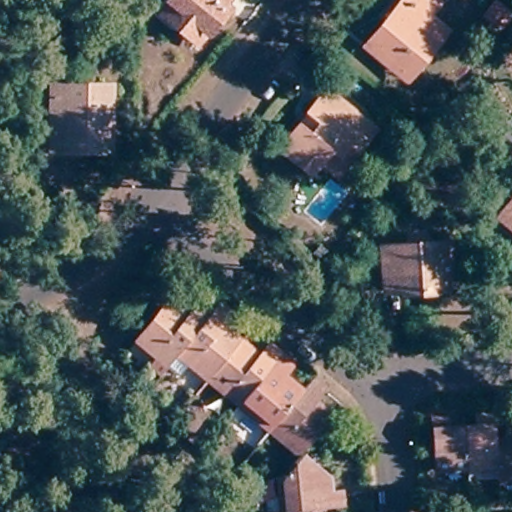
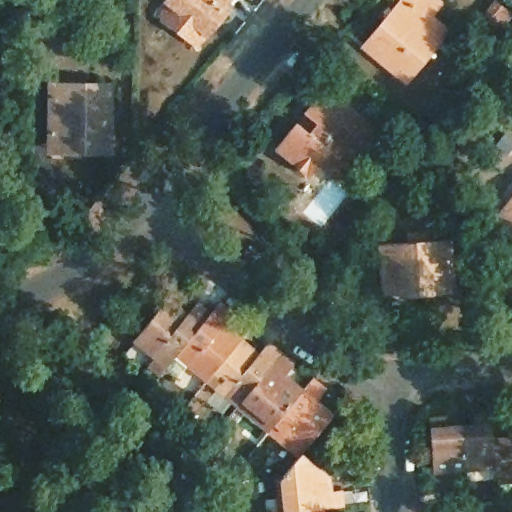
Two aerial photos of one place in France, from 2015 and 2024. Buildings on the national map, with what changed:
unchanged [(179,29),(161,14),(169,5),(164,1),(164,0),(221,0),(218,4),(225,7),(195,42),(179,29)]
unchanged [(358,50),(398,2),(400,0),(419,0),(431,10),(421,22),(438,35),(425,50),(398,82),(393,77),(358,50)]
unchanged [(51,145),(52,92),(52,87),(84,87),(110,87),(110,152),(83,152),(51,152),(51,145)]
unchanged [(336,181),(320,167),(311,179),(280,152),(298,131),(309,141),(318,130),(306,120),(326,95),(358,121),(374,134),(336,181)]
unchanged [(503,140),(512,147),(512,157),(506,165),(492,153),(503,140)]
unchanged [(494,222),(512,200),(512,237),(494,222)]
unchanged [(408,300),(407,294),(388,296),(384,249),(447,244),(449,270),(451,291),(433,292),(433,298),(408,300)]
unchanged [(170,302),(185,312),(194,302),(209,312),(219,302),(235,314),(229,327),(258,352),(268,338),(297,363),(287,377),(308,390),(317,377),(328,387),(319,402),(336,417),(299,457),(131,342),(170,302)]
unchanged [(498,467),(467,468),(464,428),(475,427),(475,418),(494,417),(496,440),(498,467)]
unchanged [(467,468),(438,471),(433,421),(449,420),(450,430),(464,428),(467,468)]
unchanged [(510,438),(510,431),(512,430),(512,480),(499,481),(498,467),(496,440),(510,438)]
unchanged [(332,479),(331,492),(344,492),(347,510),(337,512),(282,512),(278,480),(301,457),(332,479)]

